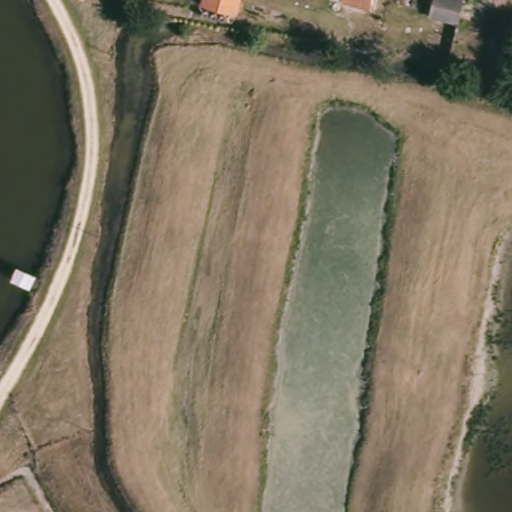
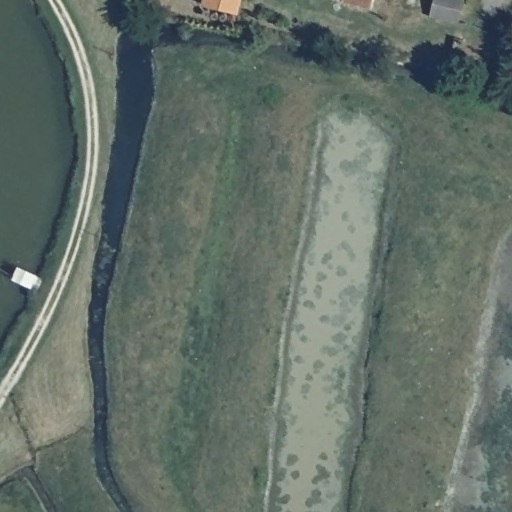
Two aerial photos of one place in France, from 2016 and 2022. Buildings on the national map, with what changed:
unchanged [(238,14),(204,6),(206,0),(241,0),(238,14)]
unchanged [(373,2),(363,0),(374,0),(373,2)]
unchanged [(467,29),(427,19),(428,15),(405,10),(408,0),(430,0),(432,0),(433,0),(465,0),(475,2),(467,29)]

